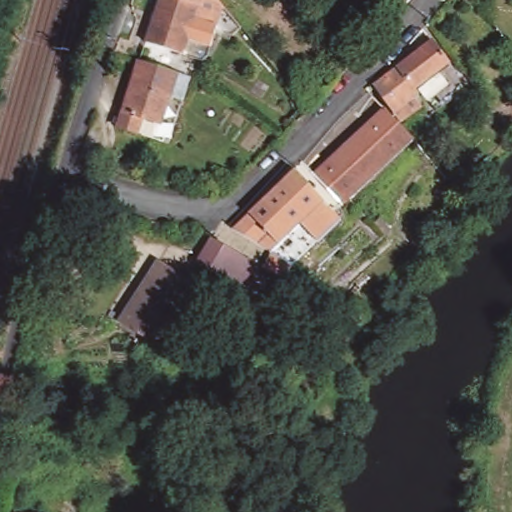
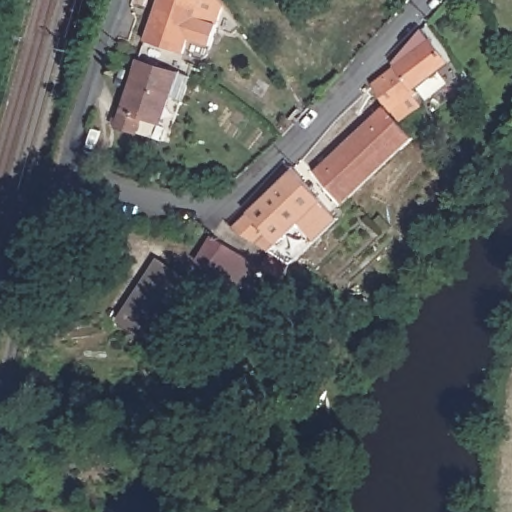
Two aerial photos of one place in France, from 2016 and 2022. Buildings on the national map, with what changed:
unchanged [(208,56),(204,59),(146,42),(158,0),(212,0),(221,11),(220,18),(208,56)]
unchanged [(395,71),(430,45),(446,67),(413,94),(415,98),(391,115),(375,94),(371,90),(390,76),(395,71)]
unchanged [(190,80),(182,104),(170,99),(161,126),(143,120),(139,134),(118,127),(139,61),(190,80)]
unchanged [(370,123),(361,114),(369,107),(378,116),(381,113),(410,142),(340,209),(326,195),(311,179),(370,123)]
unchanged [(300,168),(311,179),(326,195),(340,209),(332,216),(336,220),(302,253),(292,263),(298,267),(296,272),(293,270),(287,266),(268,255),(260,250),(230,232),(230,231),(245,217),(298,166),(300,168)]
unchanged [(220,225),(230,231),(230,232),(260,250),(245,277),(225,266),(227,263),(201,248),(216,222),(220,225)]
unchanged [(94,229),(85,259),(65,254),(74,224),(94,229)]
unchanged [(194,288),(155,347),(117,321),(155,263),(194,288)]

